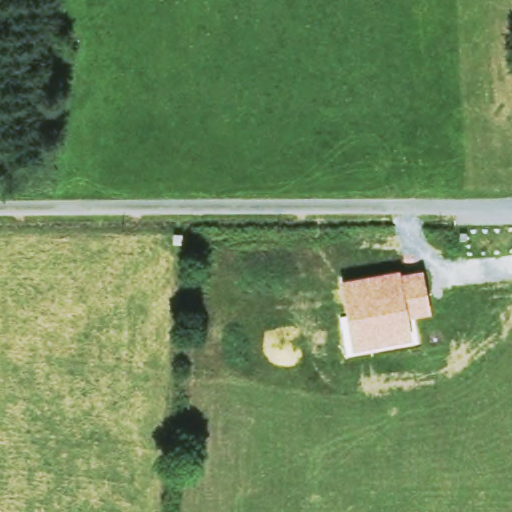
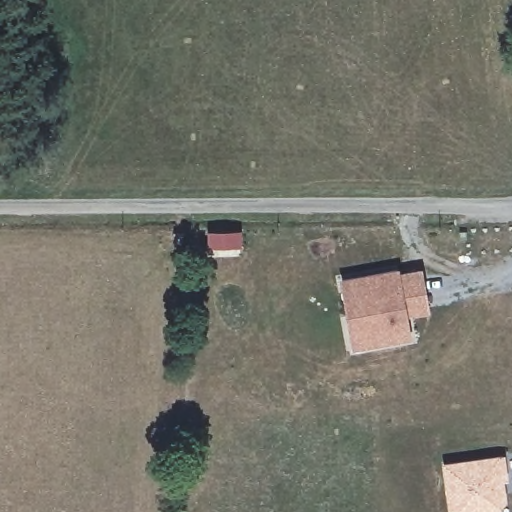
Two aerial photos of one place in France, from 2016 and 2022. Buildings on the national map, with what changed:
new [(166,241),(166,232),(175,232),(175,241),(166,241)]
unchanged [(431,313),(407,317),(411,338),(353,347),(342,279),(399,268),(400,272),(422,268),(431,313)]
new [(507,476),(502,477),(507,503),(499,512),(453,512),(446,468),(504,460),(507,476)]

